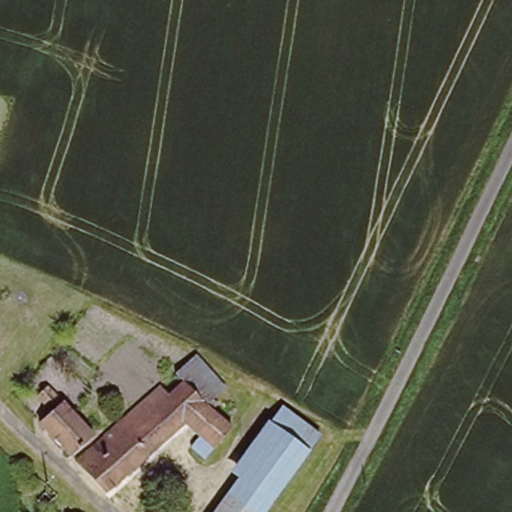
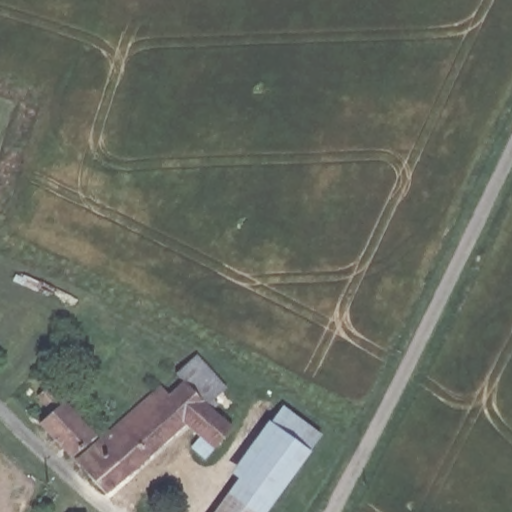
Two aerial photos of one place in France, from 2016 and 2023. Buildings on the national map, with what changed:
unchanged [(169,396),(185,382),(178,373),(180,365),(194,353),(224,385),(218,392),(210,402),(216,407),(212,413),(229,425),(204,458),(189,447),(197,437),(180,425),(107,488),(105,490),(81,461),(79,459),(77,457),(161,387),(169,396)]
unchanged [(49,412),(35,399),(47,387),(60,401),(94,435),(75,455),(40,421),(49,412)]
unchanged [(232,486),(234,487),(247,470),(239,464),(270,420),(280,406),(321,435),(310,450),(278,492),(265,510),(263,512),(214,512),(232,486)]

